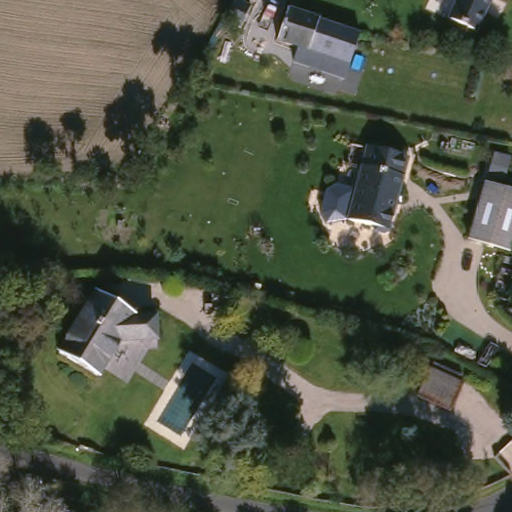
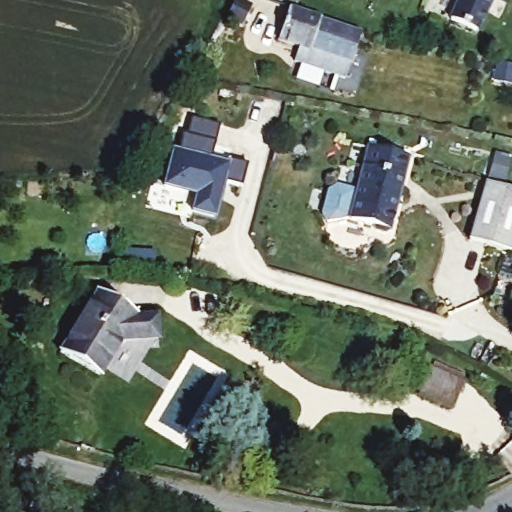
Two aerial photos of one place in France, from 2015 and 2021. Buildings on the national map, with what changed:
unchanged [(447,22),(458,0),(491,0),(474,35),(447,22)]
unchanged [(320,22),(310,52),(297,49),(277,44),(289,10),(320,22)]
unchanged [(310,52),(320,22),(358,32),(344,76),(295,60),(297,49),(310,52)]
new [(178,150),(183,132),(187,132),(191,117),(220,123),(216,140),(212,159),(228,162),(229,157),(248,162),(242,185),(224,181),(215,216),(192,210),(197,192),(164,185),(173,149),(178,150)]
unchanged [(384,236),(379,239),(370,236),(367,230),(344,223),(367,152),(407,164),(384,236)]
unchanged [(497,154),(511,159),(503,182),(489,178),(497,154)]
unchanged [(512,234),(505,252),(468,241),(487,184),(512,192),(512,234)]
unchanged [(140,312),(161,318),(157,346),(116,345),(96,377),(56,351),(97,290),(136,318),(140,312)]
unchanged [(454,410),(420,399),(431,368),(465,381),(454,410)]

